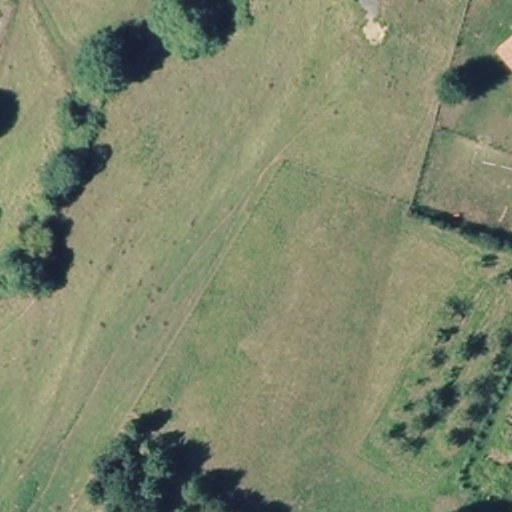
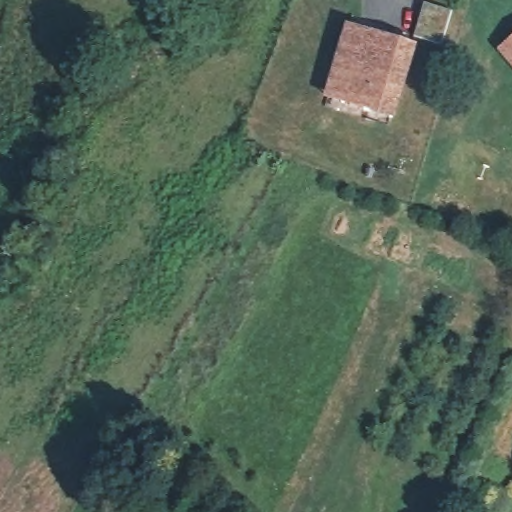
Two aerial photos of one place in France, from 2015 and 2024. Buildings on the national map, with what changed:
new [(395,121),(323,99),(346,24),(418,46),(395,121)]
unchanged [(512,33),(512,66),(496,47),(512,33)]

